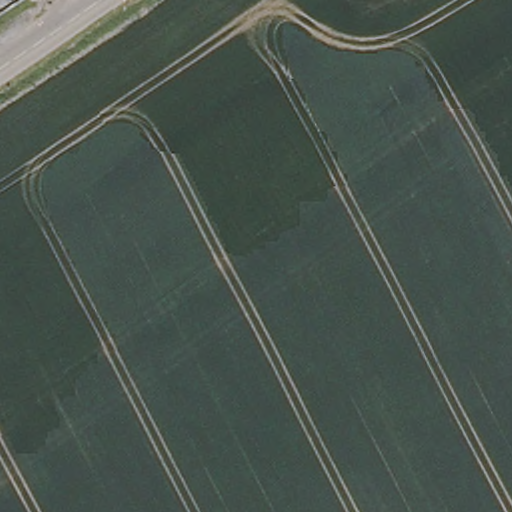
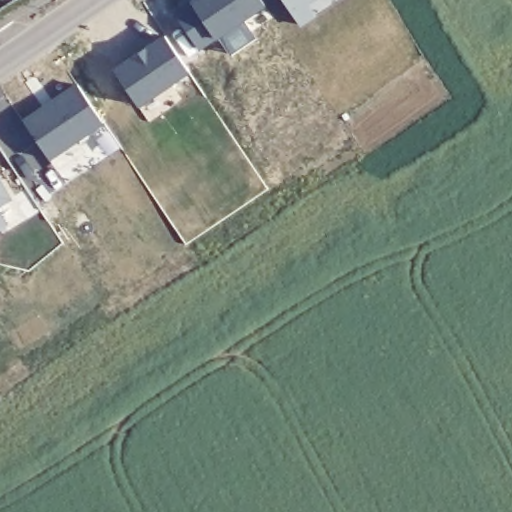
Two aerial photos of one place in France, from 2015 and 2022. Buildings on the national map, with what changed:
new [(265,4),(198,47),(175,13),(194,0),(262,0),(265,4)]
new [(314,10),(317,15),(300,25),(284,0),(329,0),(314,10)]
new [(162,37),(189,75),(137,109),(113,70),(162,37)]
new [(58,171),(49,159),(23,121),(43,108),(45,111),(55,104),(52,101),(77,85),(102,121),(78,139),(87,151),(58,171)]
new [(10,197),(0,204),(0,180),(10,197)]
new [(7,224),(0,228),(0,212),(7,224)]

